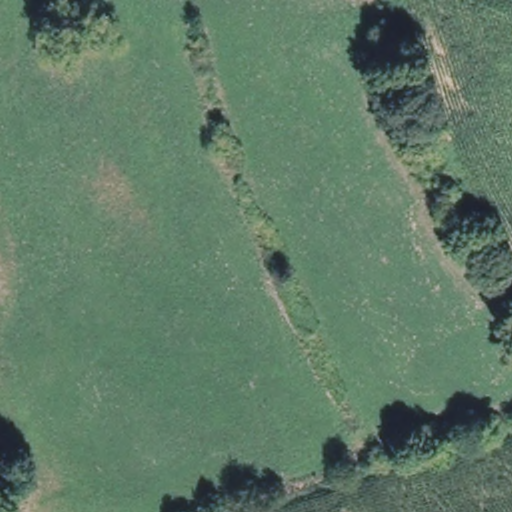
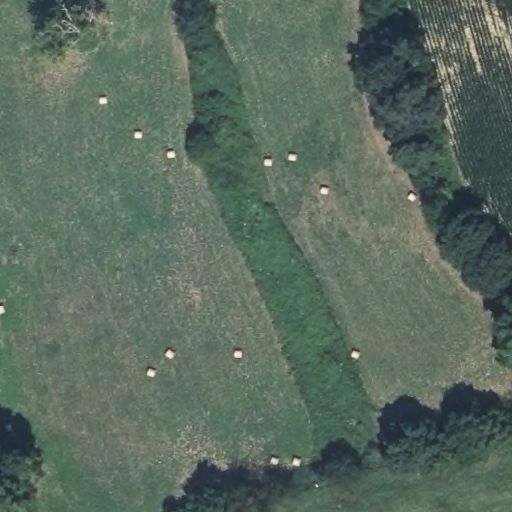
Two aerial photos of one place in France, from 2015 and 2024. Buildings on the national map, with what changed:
[]

